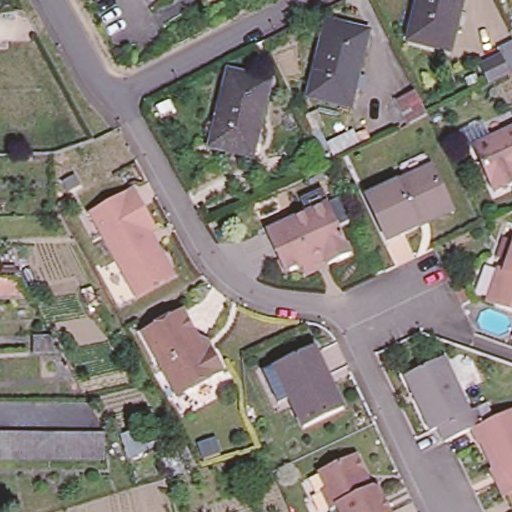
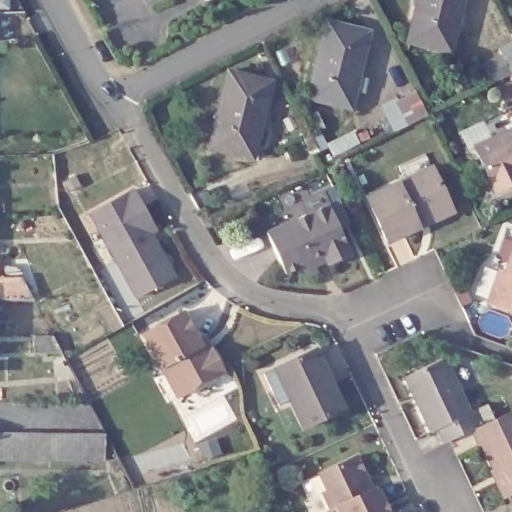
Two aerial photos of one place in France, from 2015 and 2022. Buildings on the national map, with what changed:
unchanged [(409,39),(417,0),(459,0),(450,47),(409,39)]
unchanged [(351,100),(309,91),(322,22),(365,31),(351,100)]
unchanged [(505,52),(512,48),(512,68),(505,52)]
unchanged [(267,80),(250,153),(208,144),(225,70),(267,80)]
unchanged [(400,102),(417,94),(430,120),(412,128),(400,102)]
unchanged [(494,189),(473,144),(512,126),(512,180),(494,189)]
unchanged [(310,140),(317,136),(324,132),(332,149),(325,152),(318,155),(310,140)]
unchanged [(422,228),(390,242),(369,199),(408,180),(402,167),(427,155),(434,169),(452,206),(455,212),(422,228)]
unchanged [(151,227),(142,231),(148,243),(152,241),(169,274),(132,292),(125,278),(87,210),(129,187),(151,227)]
unchanged [(327,260),(324,252),(313,257),(317,265),(303,271),(300,263),(287,269),(267,226),(307,207),(327,198),(331,205),(351,248),(327,260)]
unchanged [(484,300),(495,268),(500,269),(512,239),(512,310),(484,300)]
unchanged [(26,295),(0,295),(0,272),(15,272),(26,295)]
unchanged [(169,393),(134,331),(175,312),(192,341),(197,338),(203,348),(215,370),(169,393)]
unchanged [(55,336),(65,353),(35,353),(35,336),(55,336)]
unchanged [(345,405),(305,423),(292,395),(280,400),(265,368),(278,362),(318,345),(345,405)]
unchanged [(505,490),(480,436),(477,437),(470,423),(460,427),(448,433),(442,435),(435,420),(430,422),(402,367),(441,348),(467,405),(476,402),(481,418),(512,404),(512,487),(505,490)]
unchanged [(0,455),(0,427),(97,428),(99,432),(97,456),(0,455)]
unchanged [(367,470),(364,473),(369,483),(375,480),(382,483),(392,507),(382,512),(335,512),(330,501),(324,505),(314,486),(319,483),(311,469),(356,448),(367,470)]

